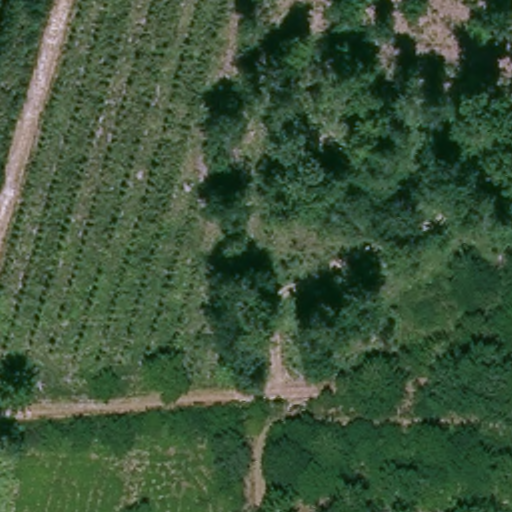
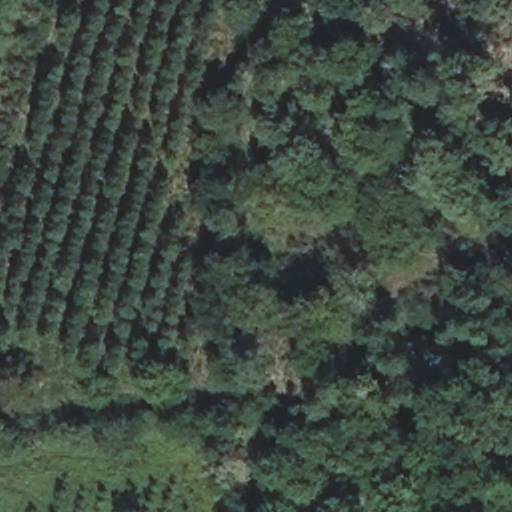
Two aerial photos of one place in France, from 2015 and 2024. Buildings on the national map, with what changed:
[]

